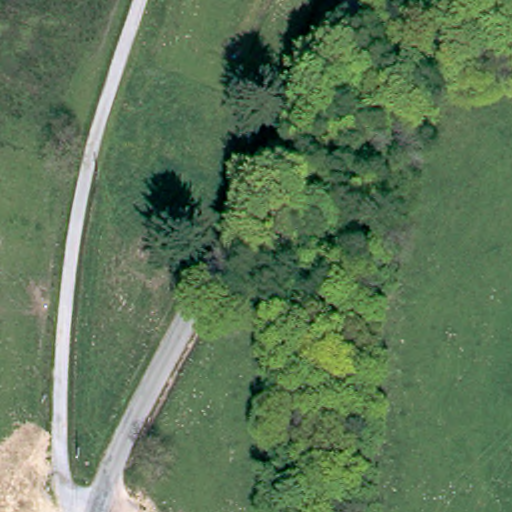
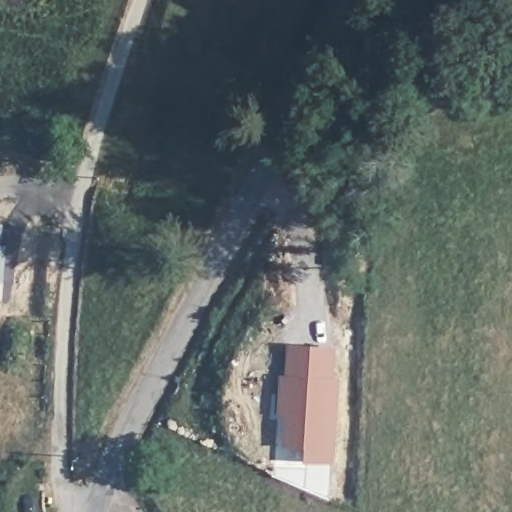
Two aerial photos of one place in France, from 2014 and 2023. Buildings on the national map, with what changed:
new [(278,414),(280,374),(286,374),(288,344),(336,346),(333,377),(338,378),(334,464),(305,463),(306,446),(283,446),(285,415),(278,414)]

